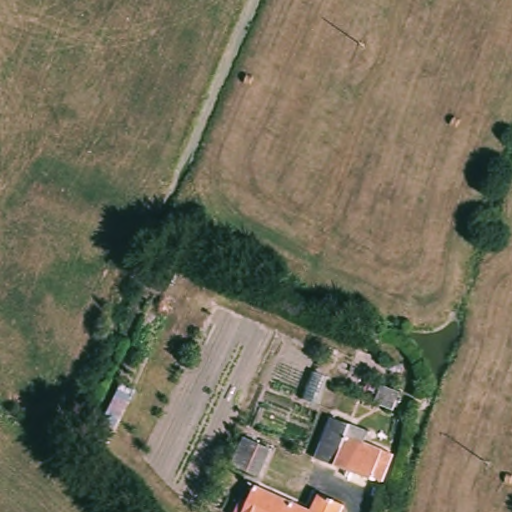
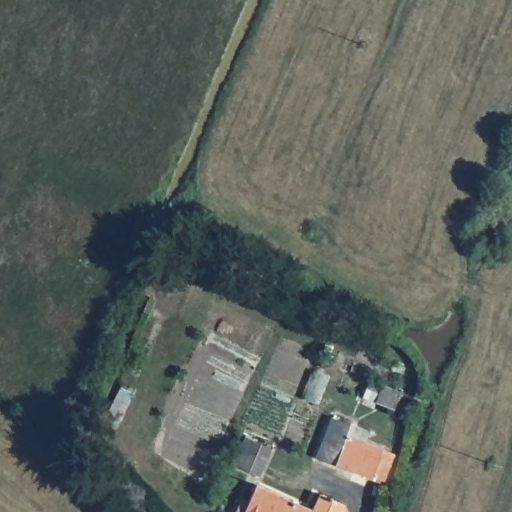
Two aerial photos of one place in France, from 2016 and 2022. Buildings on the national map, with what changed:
unchanged [(379,486),(365,479),(361,485),(310,460),(329,420),(348,429),(366,437),(357,453),(388,468),(379,486)]
unchanged [(264,476),(254,471),(234,464),(245,437),(265,445),(275,449),(264,476)]
unchanged [(310,512),(249,512),(258,491),(310,512)]
unchanged [(341,508),(339,512),(310,512),(317,498),(341,508)]

